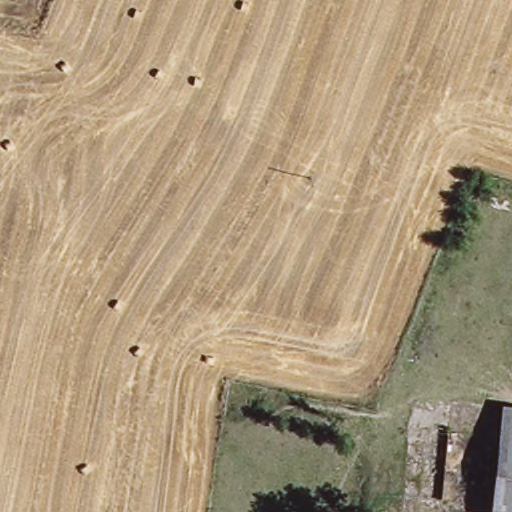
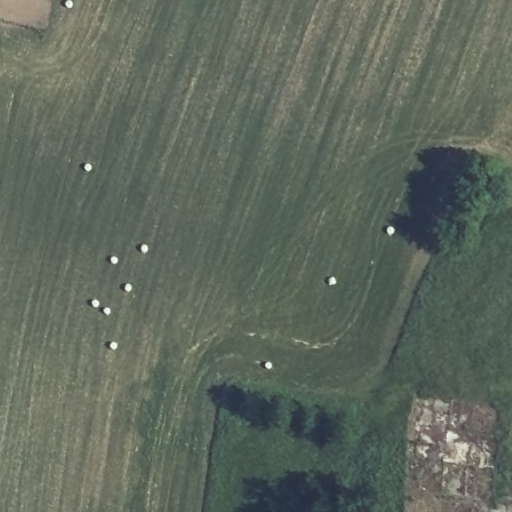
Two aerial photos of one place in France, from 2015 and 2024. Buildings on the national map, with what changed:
demolished [(512,508),(490,507),(496,404),(512,405),(512,508)]

